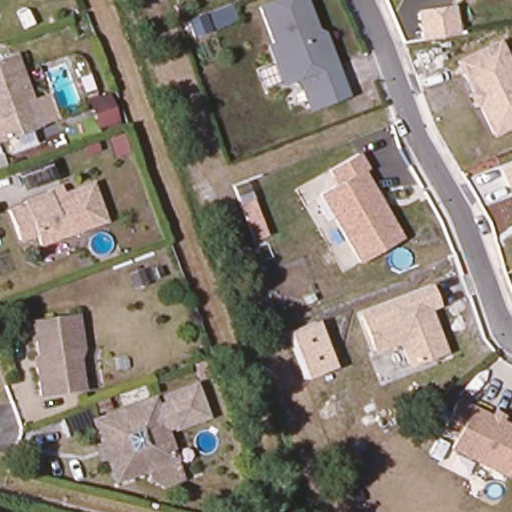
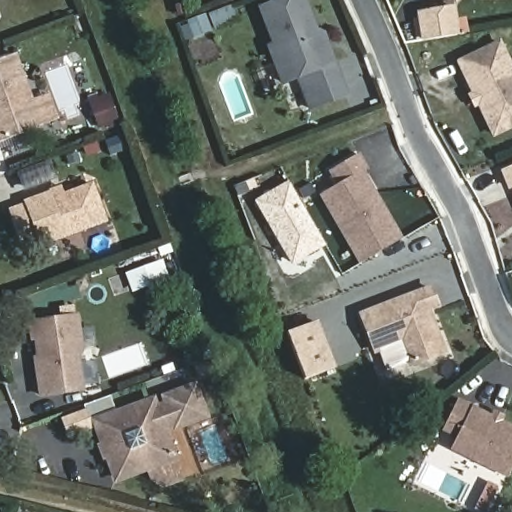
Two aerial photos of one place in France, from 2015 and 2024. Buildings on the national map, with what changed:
unchanged [(337,69),(347,98),(312,111),(300,80),(285,85),(278,69),(271,49),(276,46),(262,10),(289,0),(306,0),(318,34),(325,36),(327,45),(335,65),(337,69)]
unchanged [(416,11),(448,5),(453,33),(421,39),(416,11)]
unchanged [(467,97),(472,95),(458,69),(457,64),(497,45),(508,69),(512,77),(512,126),(491,136),(476,105),(472,107),(467,97)]
unchanged [(36,129),(0,142),(0,61),(11,57),(36,129)]
unchanged [(331,168),(358,152),(367,167),(362,170),(373,187),(380,201),(402,237),(361,260),(322,191),(338,181),(331,168)]
unchanged [(510,189),(503,173),(512,170),(512,188),(510,189)]
new [(291,267),(256,200),(290,181),(325,245),(291,267)]
unchanged [(254,240),(233,187),(247,182),(267,235),(254,240)]
unchanged [(54,200),(93,185),(107,221),(41,246),(37,236),(21,241),(11,211),(26,205),(25,203),(51,194),(54,200)]
unchanged [(146,283),(132,288),(126,275),(141,269),(146,283)]
unchanged [(425,286),(432,302),(422,307),(435,336),(438,346),(406,359),(397,339),(371,350),(365,334),(357,314),(425,286)]
unchanged [(94,387),(80,390),(37,396),(34,366),(37,365),(34,340),(29,340),(27,323),(73,316),(78,349),(88,348),(94,387)]
unchanged [(305,378),(287,331),(318,320),(336,367),(305,378)]
unchanged [(162,401),(160,395),(195,382),(207,417),(172,431),(170,425),(164,427),(157,403),(162,401)]
unchanged [(149,491),(142,473),(109,486),(87,419),(153,393),(157,403),(164,427),(182,480),(149,491)]
unchanged [(491,414),(501,418),(512,424),(512,466),(508,473),(452,446),(457,433),(443,426),(457,398),(491,414)]

